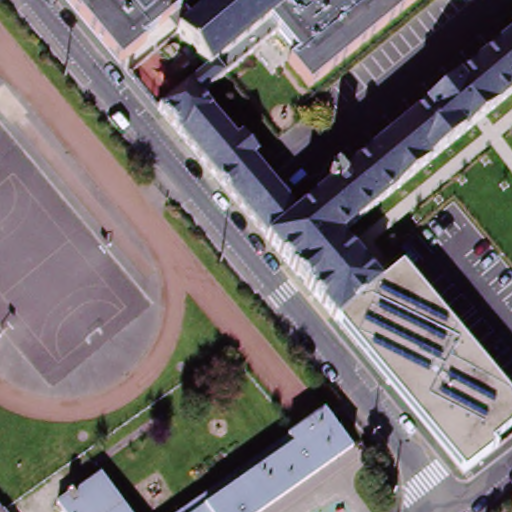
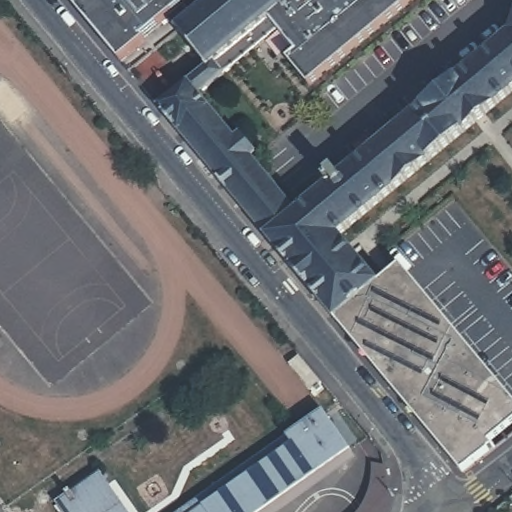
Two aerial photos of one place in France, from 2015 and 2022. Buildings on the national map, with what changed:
unchanged [(69,0),(191,0),(143,38),(146,42),(121,62),(69,0)]
unchanged [(212,0),(297,0),(302,9),(313,0),(416,0),(309,87),(289,62),(297,54),(270,20),(266,23),(275,33),(225,74),(223,76),(205,63),(176,29),(212,0)]
unchanged [(380,284),(401,267),(502,386),(511,383),(512,385),(512,437),(499,447),(494,448),(463,472),(340,323),(335,322),(266,238),(265,236),(157,109),(205,69),(205,63),(223,76),(200,95),(235,138),(241,133),(259,155),(254,159),(297,212),(510,34),(512,30),(512,94),(342,235),(380,284)]
unchanged [(265,512),(180,512),(296,431),(324,412),(352,450),(265,512)]
unchanged [(69,495),(67,492),(71,490),(73,492),(102,472),(130,512),(63,512),(57,503),(69,495)]

